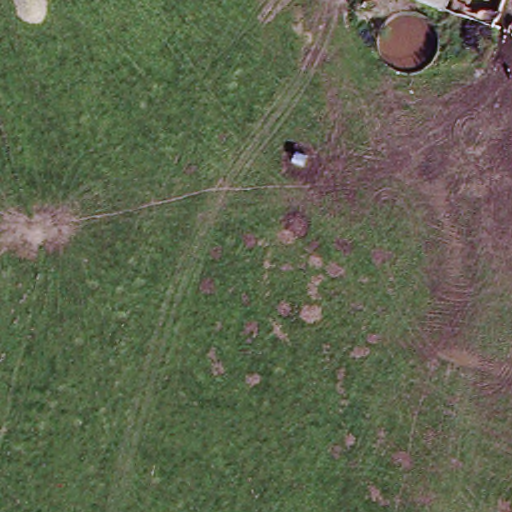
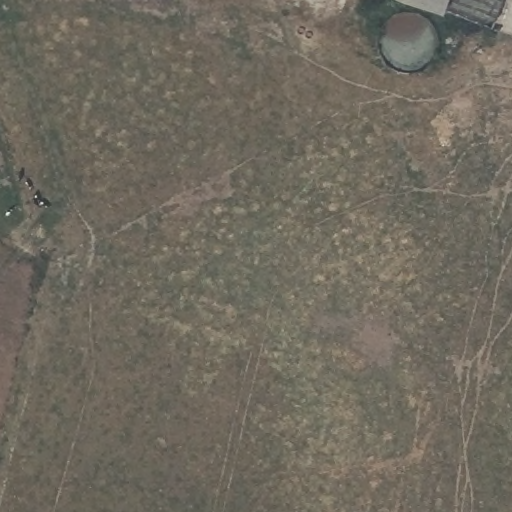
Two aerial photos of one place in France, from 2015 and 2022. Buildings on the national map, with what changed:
unchanged [(422,0),(450,0),(447,9),(422,0)]

